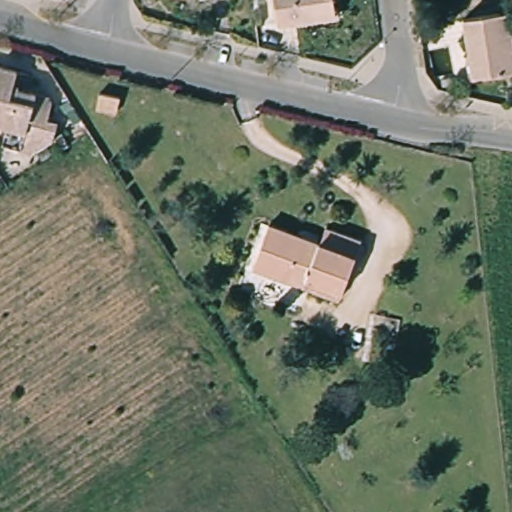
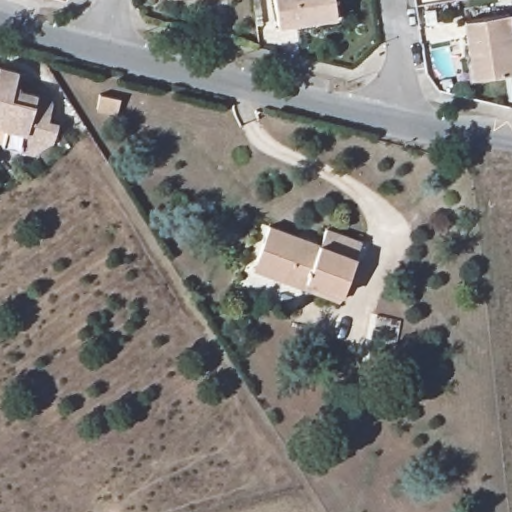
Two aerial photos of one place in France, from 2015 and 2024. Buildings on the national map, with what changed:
unchanged [(271,26),(267,0),(327,0),(330,18),(271,26)]
unchanged [(505,14),(512,63),(512,74),(465,79),(457,20),(505,14)]
unchanged [(6,134),(0,133),(0,74),(17,79),(15,95),(51,106),(50,127),(57,130),(55,141),(28,157),(22,155),(3,149),(5,139),(6,134)]
unchanged [(258,258),(270,225),(321,243),(325,232),(362,244),(341,301),(286,282),(254,270),(258,258)]

